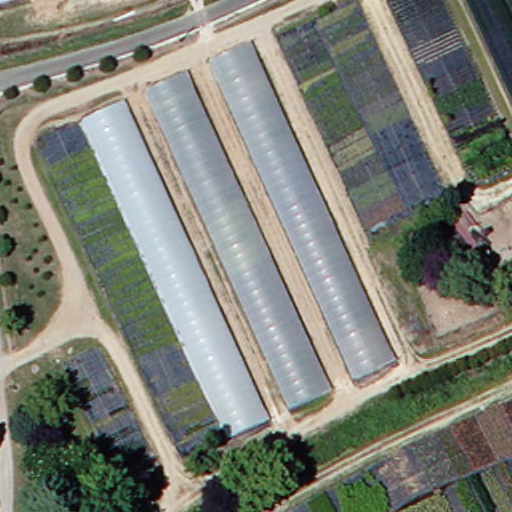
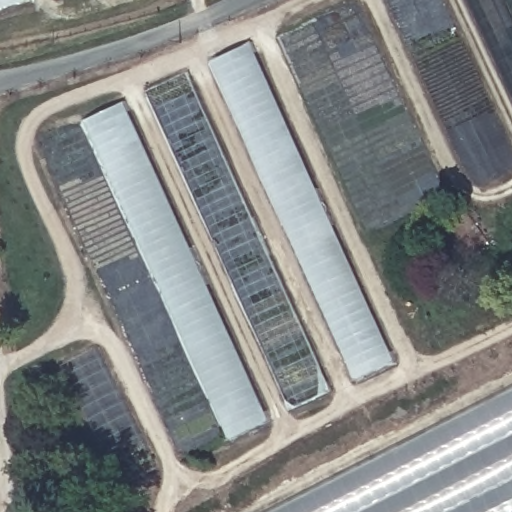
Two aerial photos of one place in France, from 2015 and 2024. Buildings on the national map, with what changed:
unchanged [(0,7),(0,0),(25,0),(0,7)]
unchanged [(512,95),(470,0),(512,0),(512,95)]
unchanged [(253,43),(399,361),(234,440),(85,122),(253,43)]
new [(512,512),(281,512),(512,394),(512,512)]

